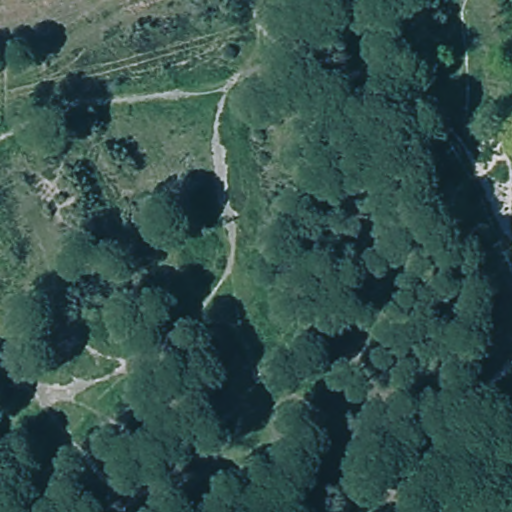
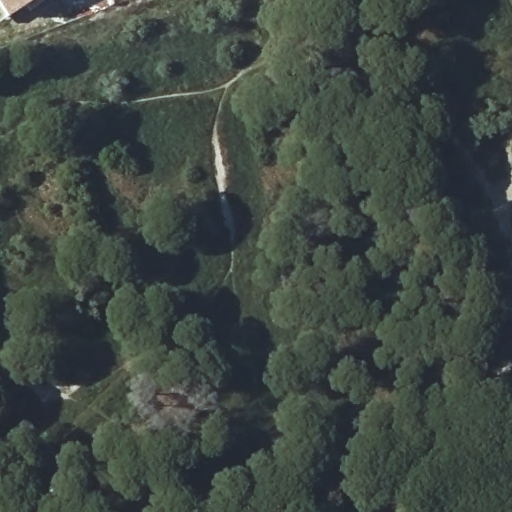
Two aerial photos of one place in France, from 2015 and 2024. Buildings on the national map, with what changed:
new [(9,20),(0,5),(0,0),(36,0),(9,20)]

